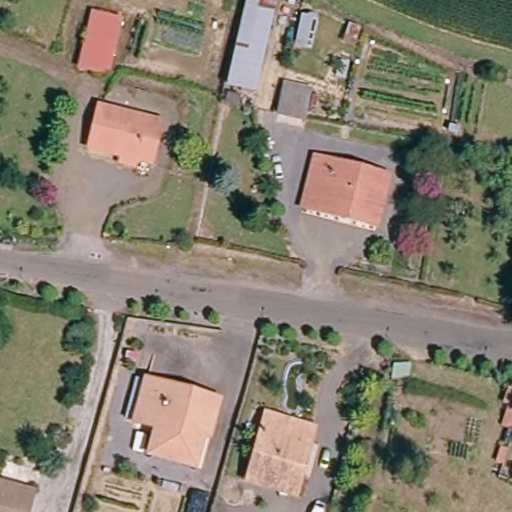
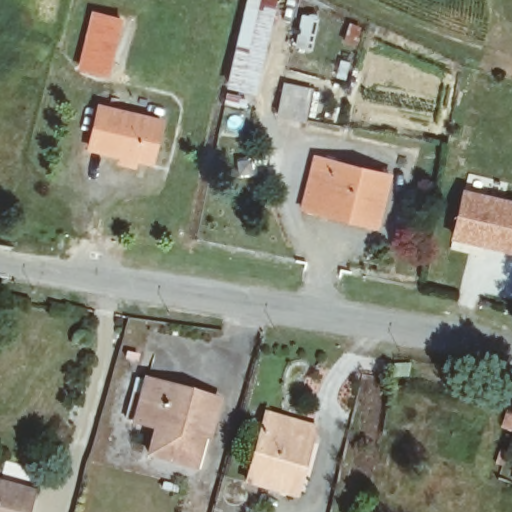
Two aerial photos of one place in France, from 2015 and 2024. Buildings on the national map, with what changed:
unchanged [(247,92),(224,86),(243,0),(267,0),(247,92)]
unchanged [(86,16),(115,23),(99,75),(72,66),(86,16)]
unchanged [(273,120),(281,89),(308,95),(301,126),(273,120)]
unchanged [(112,161),(115,151),(83,143),(94,104),(158,120),(147,159),(132,155),(129,166),(112,161)]
unchanged [(298,212),(310,161),(385,179),(373,230),(354,225),(315,216),(298,212)]
new [(462,191),(512,202),(512,250),(451,235),(462,191)]
unchanged [(212,396),(201,433),(197,431),(188,462),(145,449),(152,421),(131,414),(143,375),(203,393),(212,396)]
unchanged [(511,426),(500,423),(506,401),(500,399),(504,385),(512,388),(512,423),(511,426)]
unchanged [(307,427),(293,475),(288,491),(244,478),(262,414),(300,425),(307,427)]
unchanged [(505,451),(502,461),(496,459),(500,445),(506,446),(505,451)]
unchanged [(22,512),(0,512),(0,475),(30,483),(22,512)]
demolished [(204,492),(198,512),(183,512),(190,489),(204,492)]

